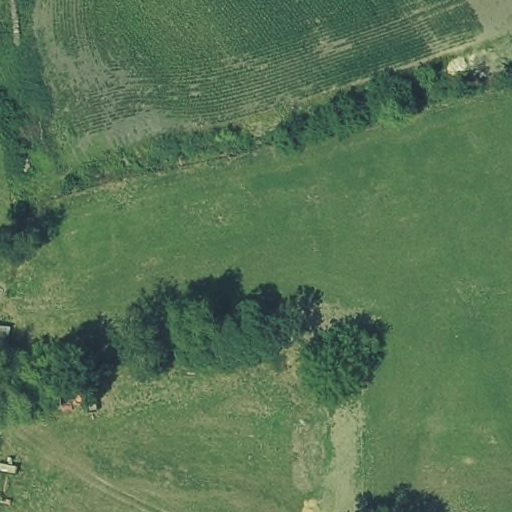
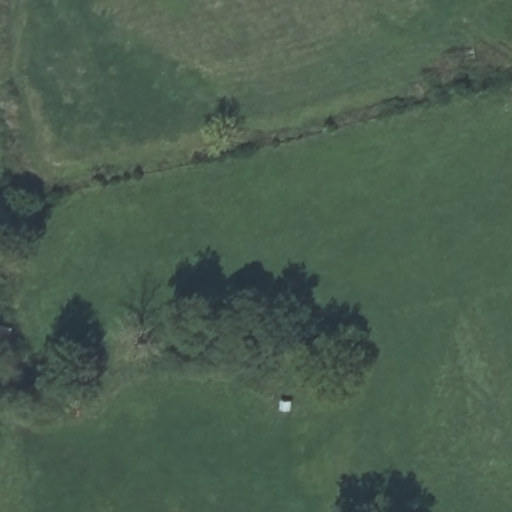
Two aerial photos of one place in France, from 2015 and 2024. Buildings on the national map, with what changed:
unchanged [(13,366),(0,366),(0,323),(14,325),(13,366)]

